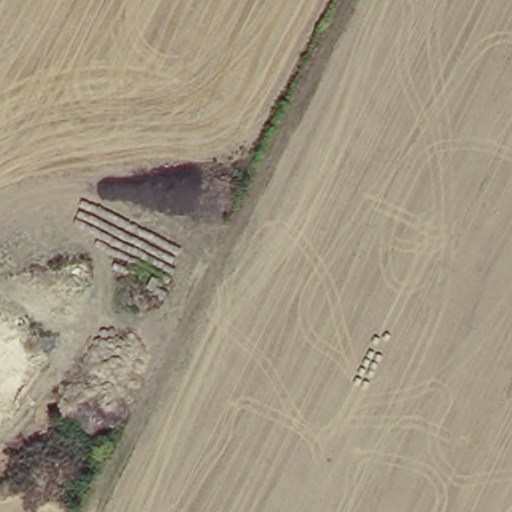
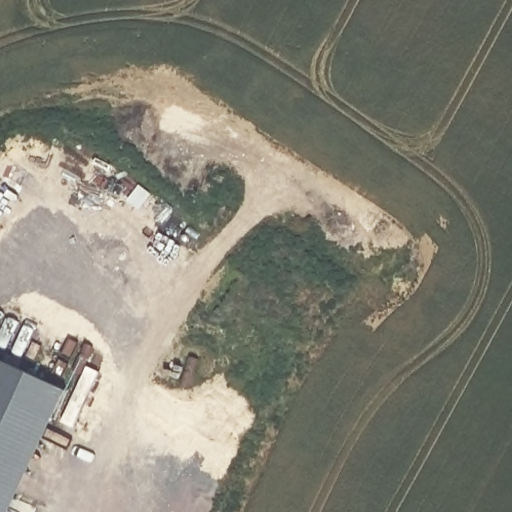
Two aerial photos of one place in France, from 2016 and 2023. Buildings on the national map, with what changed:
new [(70,394),(12,512),(0,512),(0,360),(70,394)]

